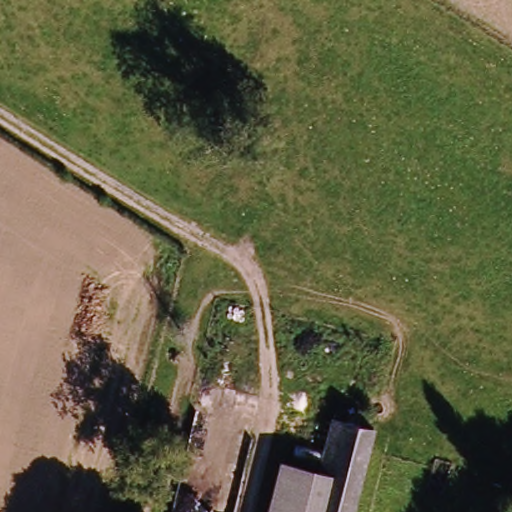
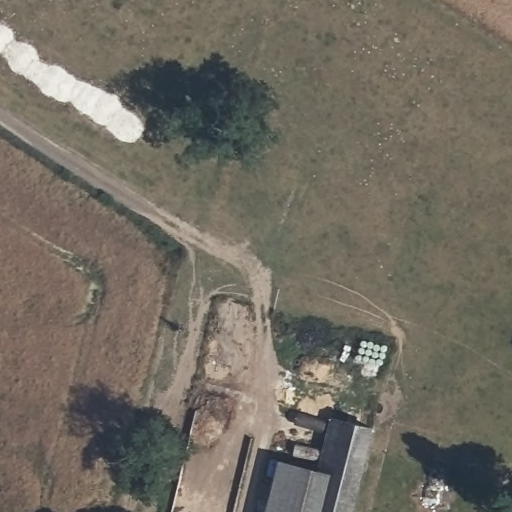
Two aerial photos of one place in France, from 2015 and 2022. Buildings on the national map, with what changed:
unchanged [(319,475),(333,423),(374,433),(355,512),(323,512),(332,477),(319,475)]
unchanged [(323,512),(270,512),(282,465),(319,475),(332,477),(323,512)]

